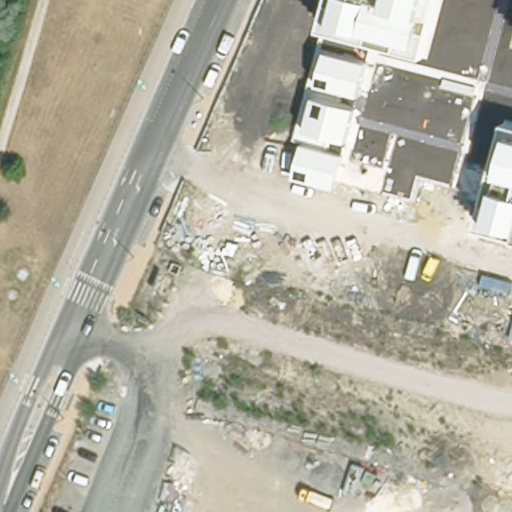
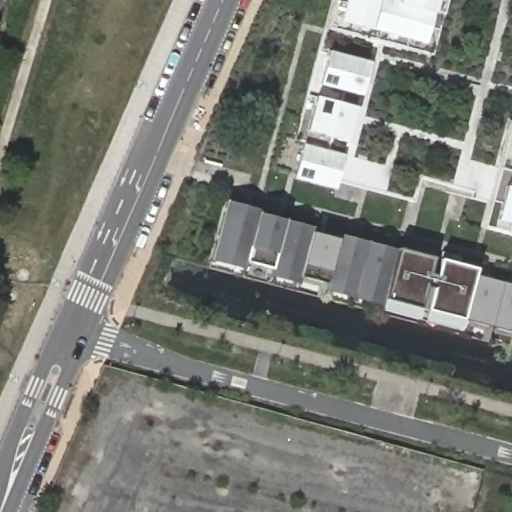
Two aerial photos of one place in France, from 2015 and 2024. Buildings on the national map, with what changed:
unchanged [(325,28),(428,54),(443,0),(512,0),(512,123),(509,122),(488,196),(420,179),(413,201),(336,180),(333,190),(287,177),(325,28)]
unchanged [(443,0),(428,54),(325,28),(332,0),(443,0)]
unchanged [(488,196),(509,122),(512,123),(512,237),(480,229),(488,196)]
new [(461,330),(381,309),(382,307),(324,290),(326,283),(300,276),(298,284),(272,276),(273,270),(244,262),(242,269),(210,260),(226,200),(479,268),(477,275),(512,283),(512,333),(463,321),(461,330)]

